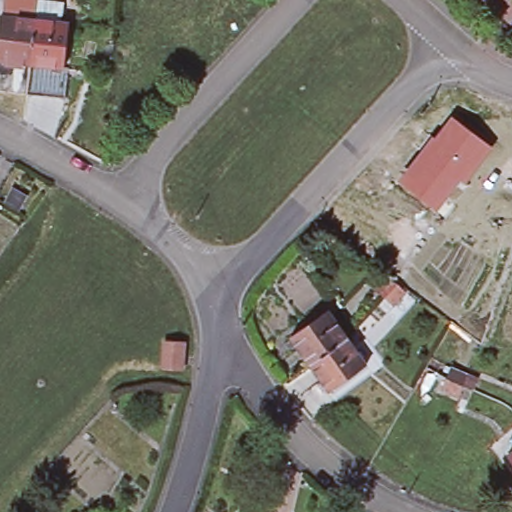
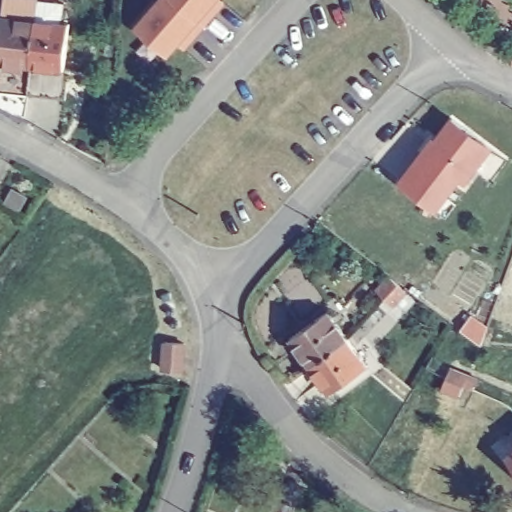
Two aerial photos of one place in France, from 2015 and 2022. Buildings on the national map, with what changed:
unchanged [(64,64),(31,60),(0,56),(0,26),(2,11),(36,15),(38,0),(64,0),(62,18),(69,19),(64,62),(64,64)]
new [(166,53),(135,26),(158,0),(175,0),(202,25),(191,38),(182,47),(176,42),(166,53)]
new [(202,25),(175,0),(220,0),(222,2),(214,11),(202,25)]
unchanged [(0,86),(0,56),(31,60),(26,90),(0,86)]
unchanged [(31,60),(64,64),(64,62),(68,63),(65,94),(26,90),(31,60)]
unchanged [(432,136),(434,139),(452,116),(493,147),(465,182),(461,179),(437,209),(399,181),(432,136)]
unchanged [(389,306),(381,297),(373,289),(388,276),(396,284),(404,292),(389,306)]
unchanged [(289,336),(325,310),(344,338),(308,363),(289,336)]
unchanged [(363,366),(327,391),(308,363),(344,338),(363,366)]
unchanged [(179,367),(161,365),(162,339),(181,341),(179,367)]
unchanged [(439,388),(444,377),(448,367),(465,375),(475,379),(471,389),(461,385),(457,396),(439,388)]
unchanged [(510,455),(512,453),(512,458),(510,455)]

